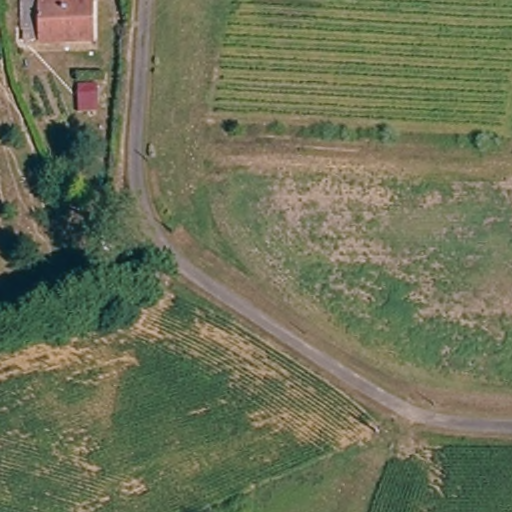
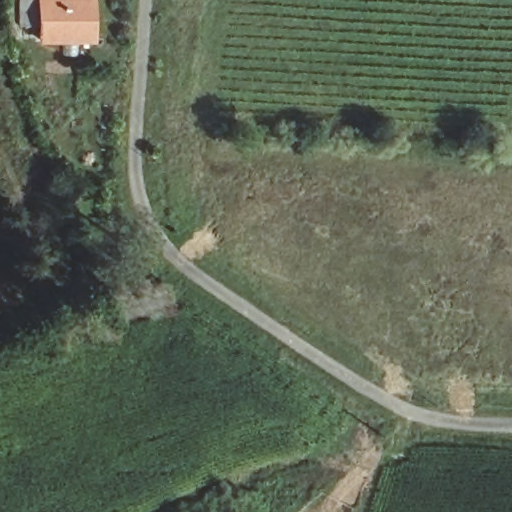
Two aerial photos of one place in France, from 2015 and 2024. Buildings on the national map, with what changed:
unchanged [(96,41),(37,41),(37,0),(97,0),(96,41)]

